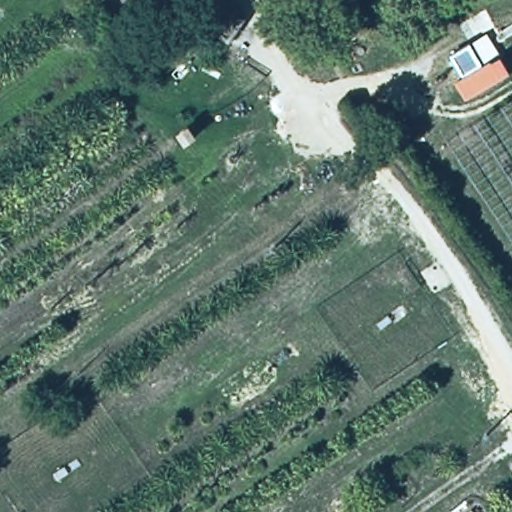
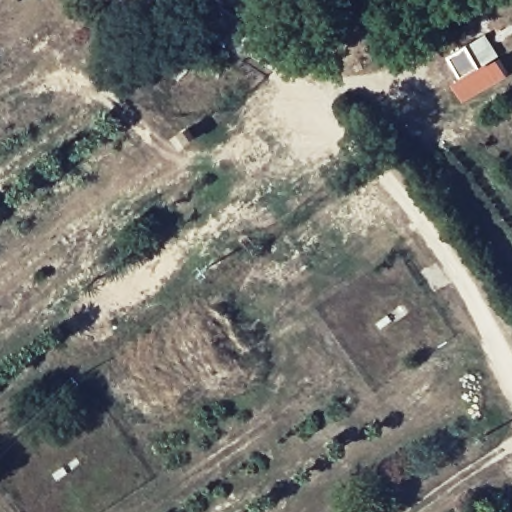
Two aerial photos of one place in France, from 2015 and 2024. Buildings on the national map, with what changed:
unchanged [(112,12),(104,0),(131,0),(112,12)]
unchanged [(202,26),(219,4),(241,21),(224,43),(202,26)]
unchanged [(484,67),(497,60),(506,77),(466,100),(455,84),(462,77),(449,57),(468,46),(484,67)]
demolished [(512,103),(512,247),(445,144),(512,103)]

